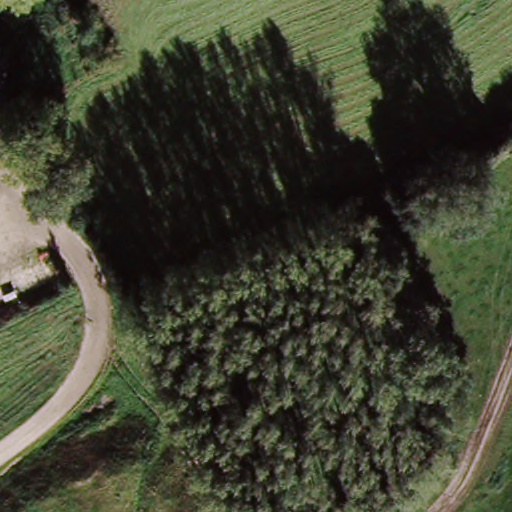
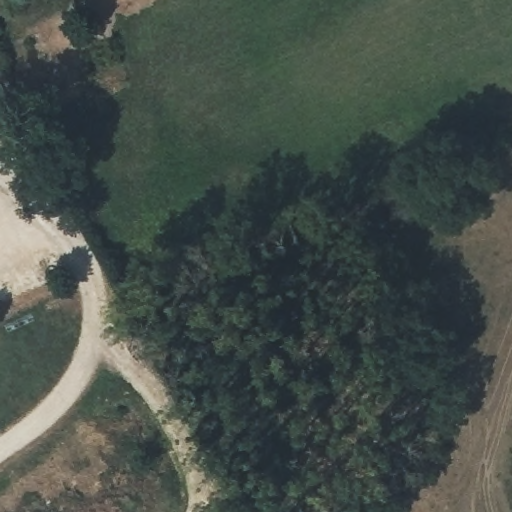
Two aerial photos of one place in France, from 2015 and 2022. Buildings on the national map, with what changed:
unchanged [(0,108),(0,96),(5,105),(0,108)]

